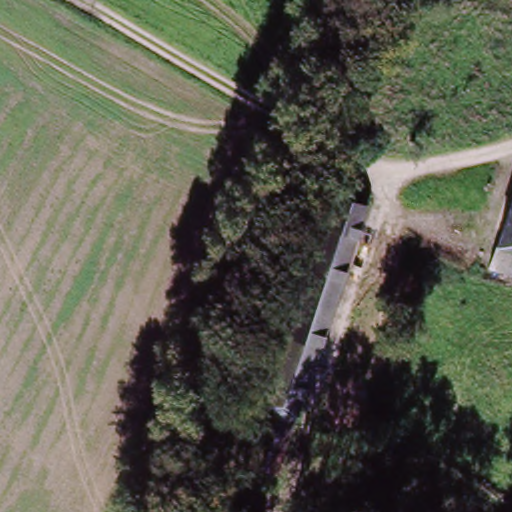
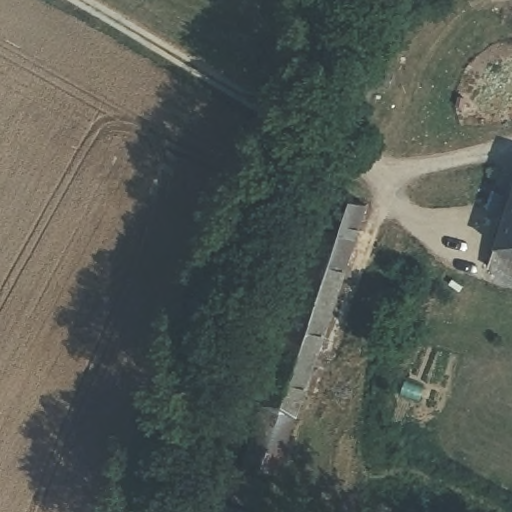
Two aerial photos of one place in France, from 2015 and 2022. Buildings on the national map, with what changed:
unchanged [(363,205),(275,476),(240,465),(330,190),(363,205)]
unchanged [(487,271),(493,250),(492,250),(512,190),(512,280),(487,271)]

